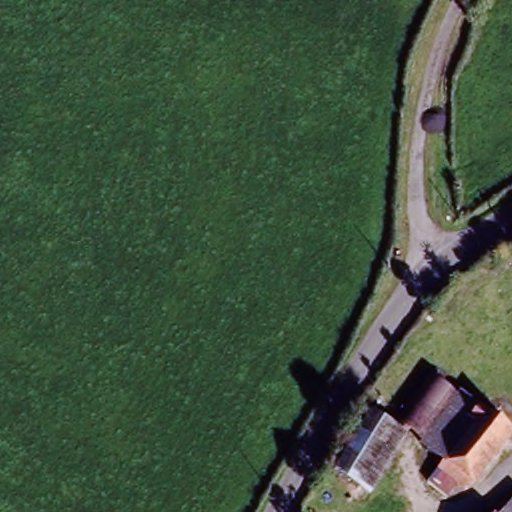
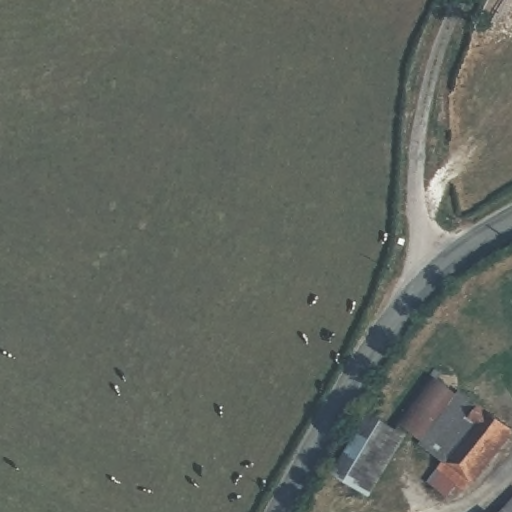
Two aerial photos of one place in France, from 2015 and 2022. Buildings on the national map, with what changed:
unchanged [(456,397),(418,442),(398,426),(436,380),(456,397)]
unchanged [(444,462),(424,445),(467,394),(511,432),(462,489),(456,484),(444,498),(427,482),(438,468),(444,462)]
unchanged [(355,490),(332,475),(370,416),(394,431),(355,490)]
unchanged [(502,512),(512,502),(512,512),(502,512)]

